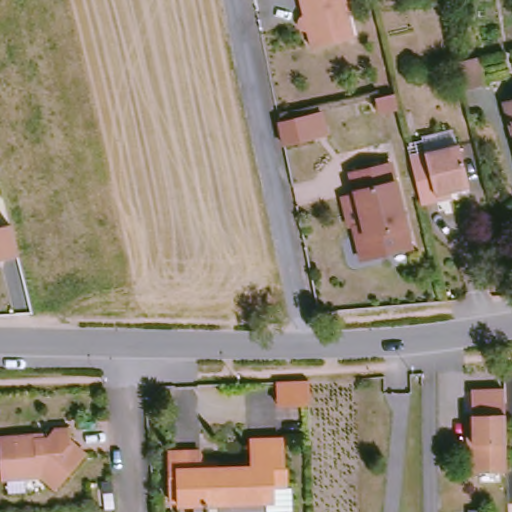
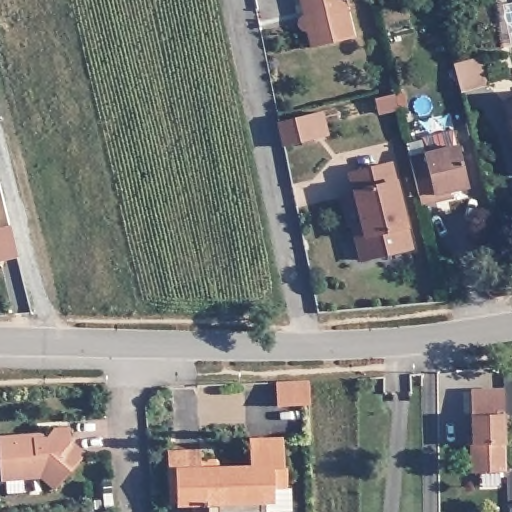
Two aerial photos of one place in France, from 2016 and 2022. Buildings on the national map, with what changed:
unchanged [(317,45),(314,26),(305,24),(304,16),(309,11),(307,0),(349,0),(357,35),(317,45)]
unchanged [(467,91),(460,65),(486,59),(493,84),(467,91)]
unchanged [(381,112),(378,97),(399,92),(403,107),(381,112)]
unchanged [(512,98),(512,138),(504,100),(512,98)]
unchanged [(286,147),(281,121),(326,111),(331,136),(286,147)]
unchanged [(437,194),(438,199),(419,203),(409,159),(459,148),(468,187),(437,194)]
unchanged [(361,261),(356,240),(365,237),(351,174),(392,165),(411,251),(361,261)]
unchanged [(0,263),(0,228),(13,225),(20,257),(0,263)]
unchanged [(311,373),(311,397),(281,398),(279,375),(311,373)]
unchanged [(474,471),(471,394),(502,393),(504,470),(474,471)]
unchanged [(91,451),(61,486),(48,473),(47,469),(33,470),(34,475),(8,477),(4,436),(41,433),(41,438),(52,437),(59,431),(75,430),(76,444),(91,451)]
unchanged [(179,507),(178,497),(171,498),(165,463),(198,459),(199,471),(214,470),(216,487),(244,485),(243,460),(261,459),(260,449),(281,447),(283,474),(278,475),(279,490),(269,490),(269,506),(262,507),(262,512),(188,512),(188,506),(179,507)]

